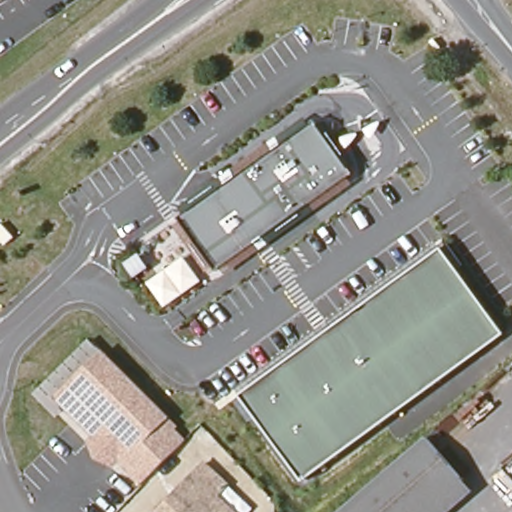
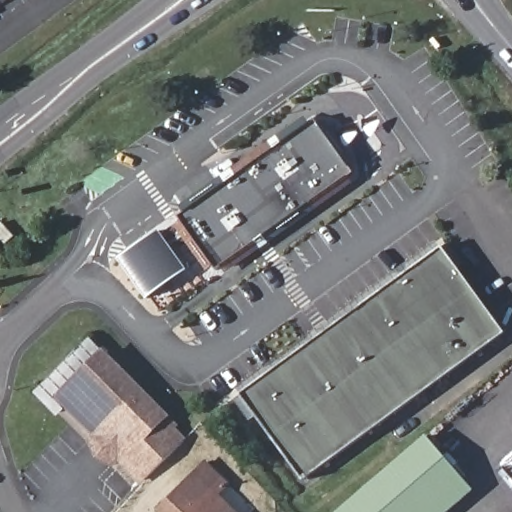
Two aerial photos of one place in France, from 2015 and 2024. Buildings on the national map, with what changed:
unchanged [(0,0),(3,0),(0,2),(0,0)]
unchanged [(311,120),(351,175),(215,272),(177,217),(311,120)]
new [(147,301),(118,262),(160,234),(189,272),(147,301)]
unchanged [(502,334),(302,481),(240,396),(441,249),(502,334)]
unchanged [(59,387),(120,455),(169,412),(184,440),(140,483),(119,461),(112,467),(87,440),(91,437),(67,410),(55,417),(35,395),(89,340),(100,351),(59,387)]
unchanged [(59,387),(100,351),(106,346),(169,412),(120,455),(59,387)]
unchanged [(427,512),(353,512),(437,443),(470,477),(427,512)]
unchanged [(239,510),(241,512),(162,512),(158,508),(204,456),(252,497),(239,510)]

